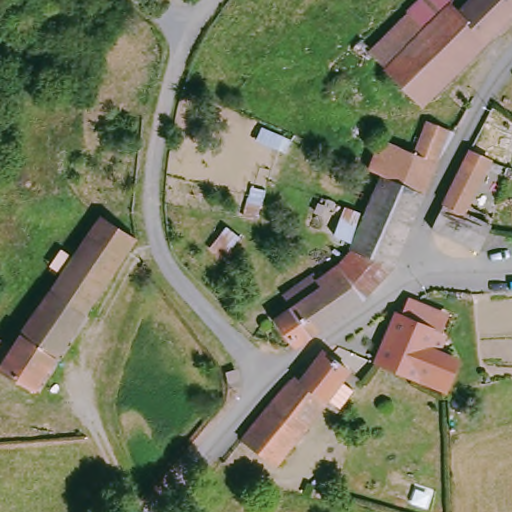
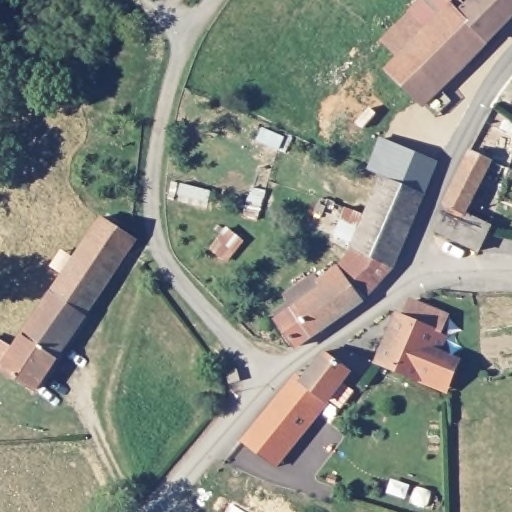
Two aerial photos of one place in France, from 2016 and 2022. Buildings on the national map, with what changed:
unchanged [(392,71),(430,32),(413,14),(428,0),(450,0),(455,6),(460,2),(468,8),(476,0),(512,0),(512,22),(430,106),(392,71)]
unchanged [(430,32),(392,71),(365,95),(335,73),(362,44),(373,53),(413,14),(430,32)]
unchanged [(443,167),(431,195),(379,171),(392,142),(427,156),(435,122),(461,136),(443,167)]
unchanged [(287,146),(282,157),(258,148),(264,135),(287,146)]
unchanged [(495,162),(467,215),(490,226),(476,254),(432,233),(472,151),(495,162)]
unchanged [(430,198),(397,271),(365,254),(346,244),(360,213),(377,224),(396,183),(430,198)]
unchanged [(80,326),(37,395),(0,373),(0,344),(14,352),(49,299),(101,219),(135,242),(80,326)]
unchanged [(397,271),(374,297),(362,283),(351,290),(338,274),(365,254),(397,271)]
unchanged [(295,347),(284,331),(276,318),(295,309),(286,298),(316,278),(322,286),(338,274),(351,290),(362,283),(374,297),(365,306),(305,341),(295,347)]
unchanged [(436,332),(420,382),(376,368),(400,315),(436,332)]
unchanged [(291,374),(293,372),(299,377),(320,352),(327,359),(350,379),(279,471),(245,436),(270,403),(272,396),(291,374)]
unchanged [(327,512),(296,512),(297,506),(327,512)]

